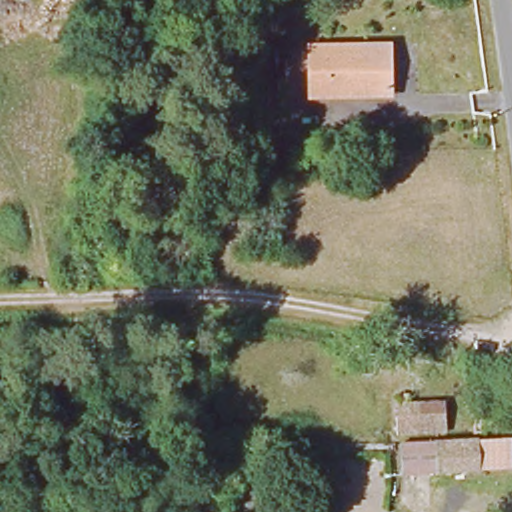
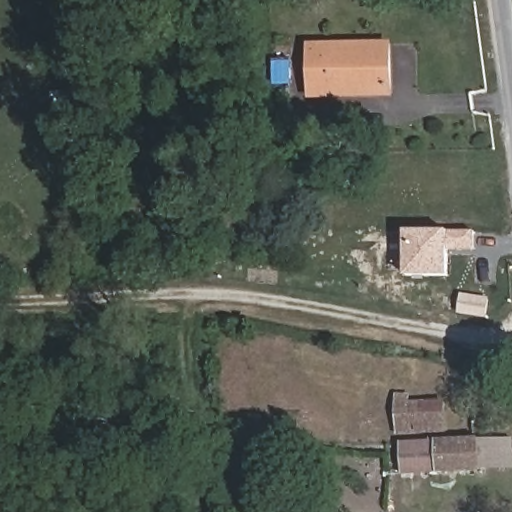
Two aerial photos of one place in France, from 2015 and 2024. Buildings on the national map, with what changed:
unchanged [(392,93),(314,97),(313,45),(392,43),(392,93)]
new [(404,231),(474,231),(474,250),(450,250),(450,278),(404,278),(404,231)]
unchanged [(413,394),(413,402),(446,401),(445,430),(394,431),(393,394),(413,394)]
unchanged [(487,418),(488,432),(470,432),(470,429),(471,417),(487,418)]
unchanged [(436,442),(512,439),(512,468),(437,472),(436,442)]
unchanged [(437,472),(401,474),(399,444),(436,442),(437,472)]

